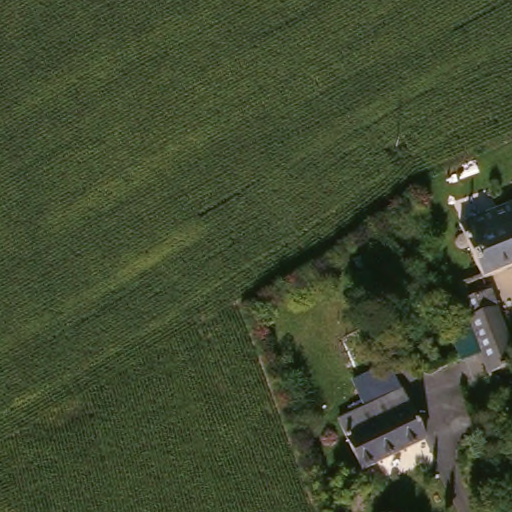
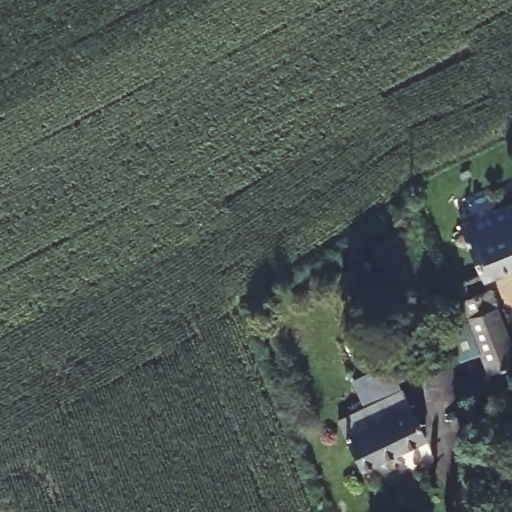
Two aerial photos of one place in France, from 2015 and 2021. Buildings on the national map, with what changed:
unchanged [(459,244),(455,231),(464,226),(463,219),(512,201),(512,263),(484,274),(472,240),(459,244)]
unchanged [(458,287),(474,279),(483,293),(493,291),(512,341),(512,364),(492,372),(458,287)]
unchanged [(345,414),(408,386),(415,404),(399,410),(351,430),(345,414)]
unchanged [(399,410),(415,404),(428,438),(363,465),(351,430),(399,410)]

